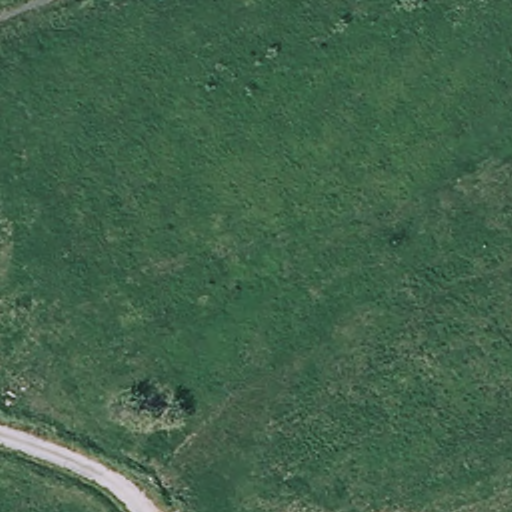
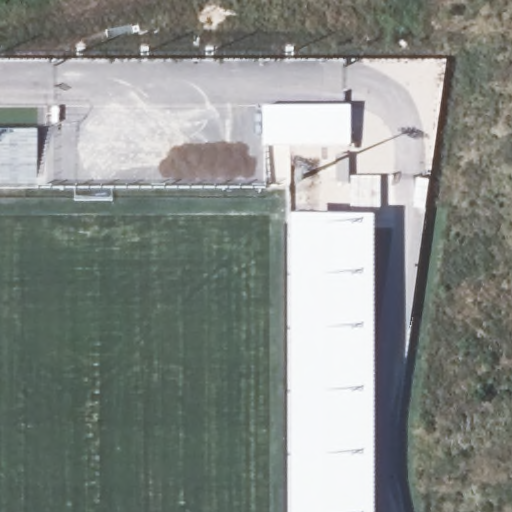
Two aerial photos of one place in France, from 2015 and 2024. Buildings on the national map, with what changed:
new [(350,106),(350,146),(262,147),(263,109),(350,106)]
new [(37,184),(0,183),(0,131),(37,131),(37,184)]
new [(373,512),(291,512),(290,219),(373,220),(373,512)]

